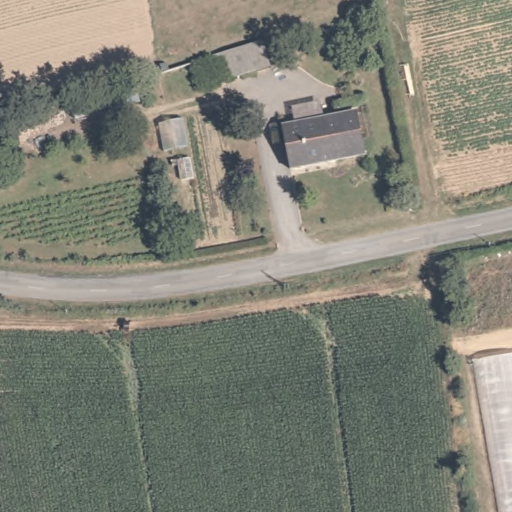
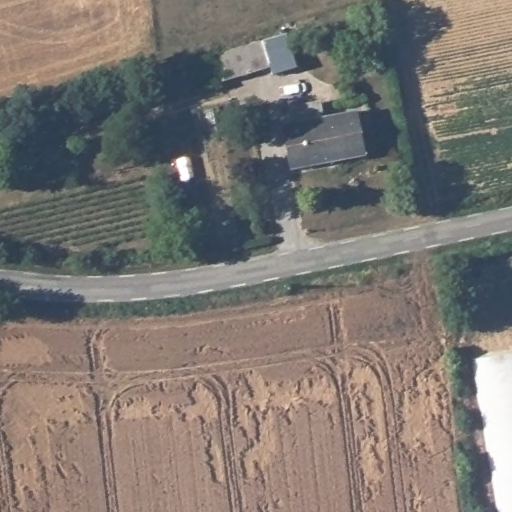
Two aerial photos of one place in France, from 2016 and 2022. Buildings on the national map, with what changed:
unchanged [(263,45),(270,70),(223,84),(215,58),(263,45)]
unchanged [(358,109),(367,151),(292,165),(283,123),(358,109)]
unchanged [(512,348),(512,512),(507,512),(480,354),(512,348)]

